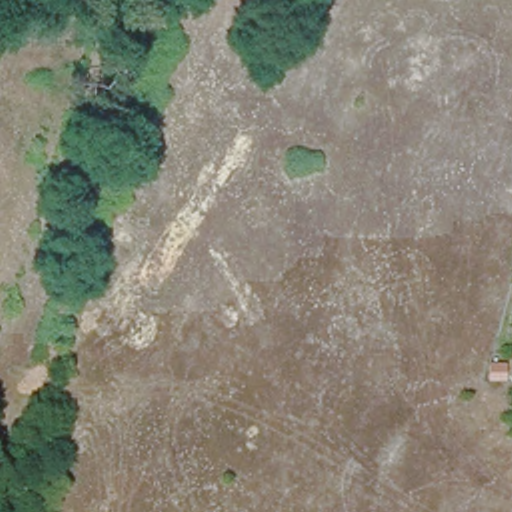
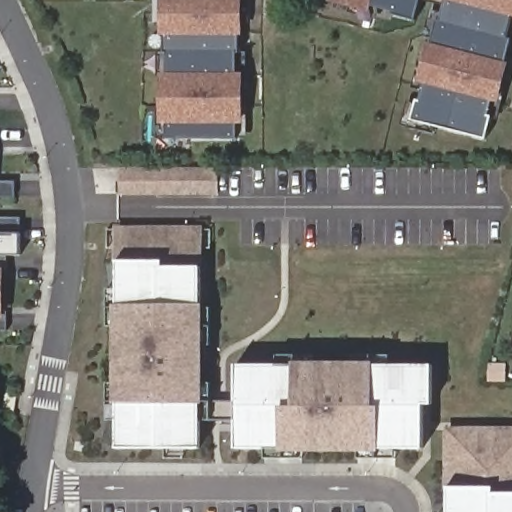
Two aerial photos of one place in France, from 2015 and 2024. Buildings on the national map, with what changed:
new [(167,138),(166,124),(159,124),(160,72),(167,72),(167,52),(164,52),(163,36),(161,36),(161,0),(242,0),(242,36),(238,36),(238,53),(235,53),(235,73),(244,74),(243,123),(236,124),(236,138),(167,138)]
new [(391,16),(392,11),(370,6),(369,11),(328,1),(329,0),(420,0),(415,21),(391,16)]
new [(508,40),(510,41),(505,62),(509,63),(498,102),(490,101),(487,116),(491,117),(485,139),(411,121),(415,100),(420,101),(424,84),(417,82),(427,42),(431,43),(437,21),(440,22),(444,4),(429,0),(512,0),(512,24),(508,40)]
new [(120,168),(218,167),(218,194),(120,194),(120,168)]
new [(0,197),(0,180),(15,180),(15,197),(0,197)]
new [(0,330),(0,217),(20,217),(21,233),(20,254),(10,254),(8,271),(5,271),(5,312),(7,312),(7,330),(0,330)]
new [(424,447),(380,448),(380,452),(280,453),(281,447),(237,447),(236,422),(200,422),(200,448),(117,448),(116,402),(114,402),(114,306),(117,306),(116,261),(114,227),(202,226),(201,266),(201,305),(204,305),(204,402),(236,403),(236,366),(293,366),(293,363),(375,362),(375,366),(431,366),(432,405),(423,406),(424,447)]
new [(449,488),(445,488),(444,427),(512,426),(512,512),(450,512),(449,488)]

